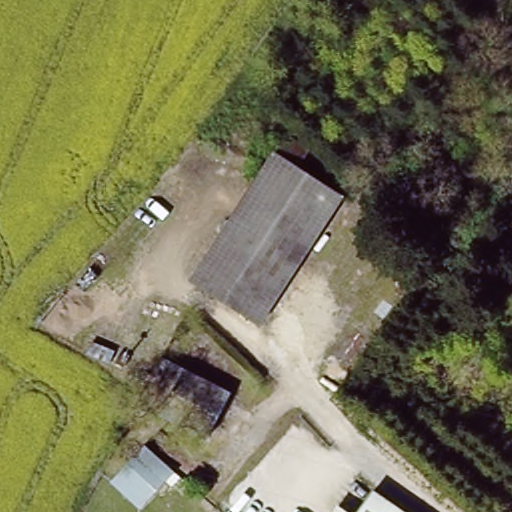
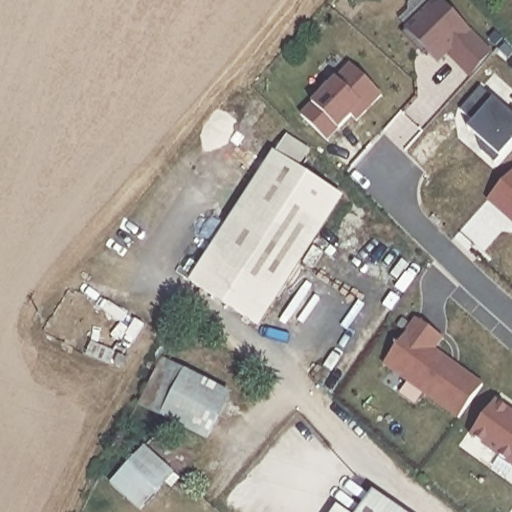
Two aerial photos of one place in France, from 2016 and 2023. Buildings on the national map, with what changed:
new [(436,0),(441,0),(482,42),(460,65),(448,53),(438,63),(427,51),(423,54),(402,33),(436,0)]
new [(352,116),(328,141),(302,116),(352,65),(383,95),(368,110),(358,121),(352,116)]
new [(495,99),(512,114),(512,146),(497,163),(483,151),(488,145),(469,128),(495,99)]
unchanged [(274,162),(342,205),(261,333),(244,322),(193,290),(199,281),(274,162)]
new [(489,199),(512,173),(512,219),(503,211),(489,199)]
new [(458,420),(382,364),(413,316),(444,338),(437,349),(483,383),(458,420)]
unchanged [(158,362),(225,396),(200,443),(168,426),(135,409),(137,403),(158,362)]
new [(468,436),(494,399),(512,411),(512,465),(468,436)]
unchanged [(141,512),(105,478),(112,472),(141,443),(177,478),(160,493),(141,512)]
unchanged [(394,512),(357,512),(368,494),(394,512)]

